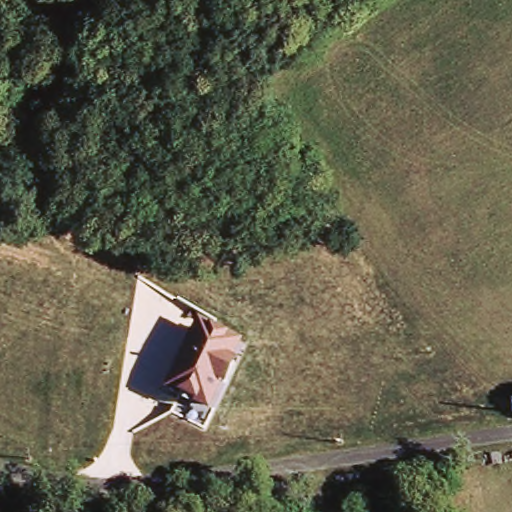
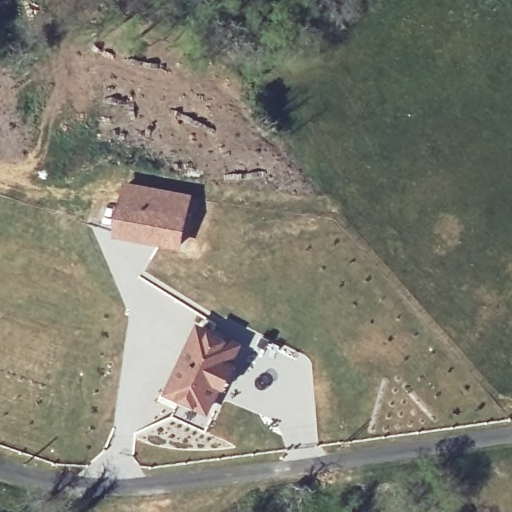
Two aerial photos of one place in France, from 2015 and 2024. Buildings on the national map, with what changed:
new [(125,180),(192,194),(182,248),(115,236),(125,180)]
unchanged [(212,332),(217,323),(232,331),(230,336),(242,342),(234,359),(244,364),(234,385),(225,382),(210,410),(172,392),(202,328),(212,332)]

